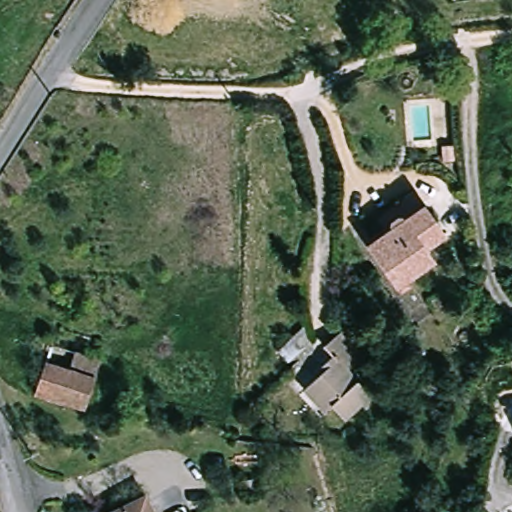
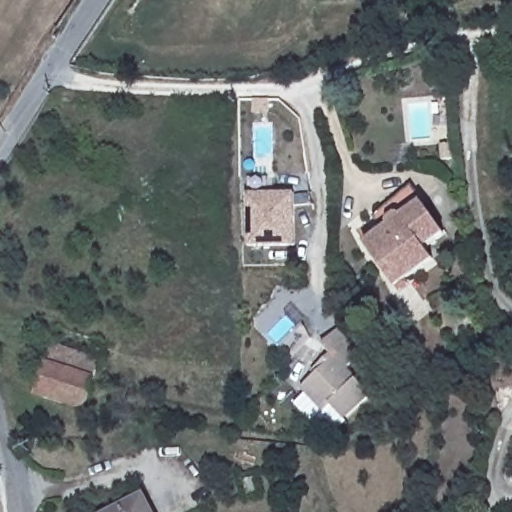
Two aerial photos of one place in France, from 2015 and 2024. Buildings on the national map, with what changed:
unchanged [(426,245),(435,259),(395,285),(366,239),(385,228),(375,212),(410,190),(416,187),(435,217),(445,232),(426,245)]
new [(295,193),(296,247),(248,248),(246,194),(295,193)]
unchanged [(450,305),(437,311),(431,300),(444,294),(450,305)]
unchanged [(302,325),(313,336),(287,362),(276,350),(302,325)]
unchanged [(323,366),(320,362),(333,350),(323,340),(337,327),(361,353),(348,367),(356,376),(369,389),(342,414),(335,407),(330,401),(323,407),(302,385),(323,366)]
unchanged [(100,361),(88,410),(35,397),(48,346),(100,361)]
unchanged [(150,495),(159,512),(117,512),(150,495)]

